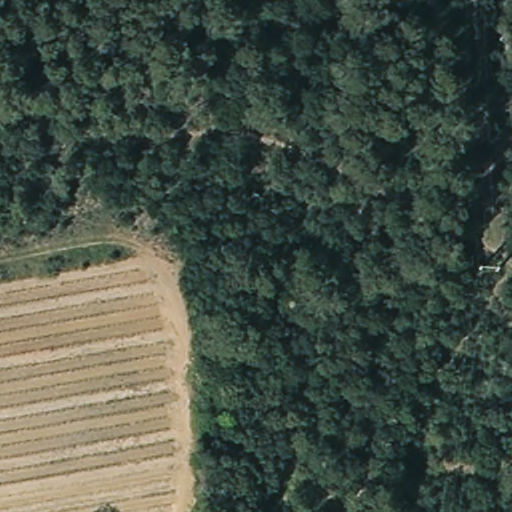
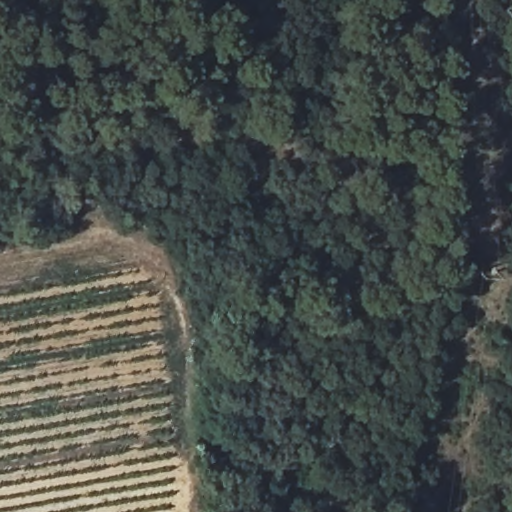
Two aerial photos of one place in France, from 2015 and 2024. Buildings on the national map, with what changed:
[]

